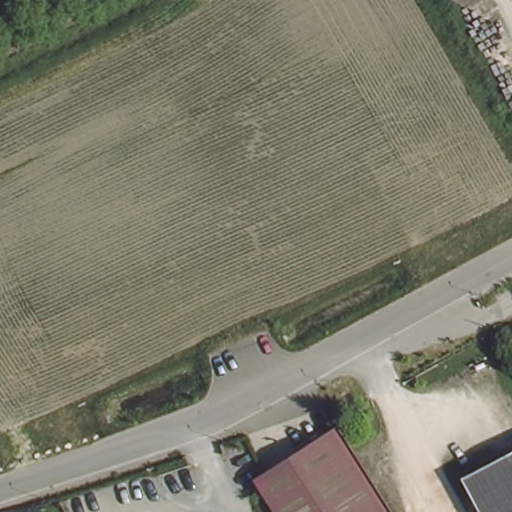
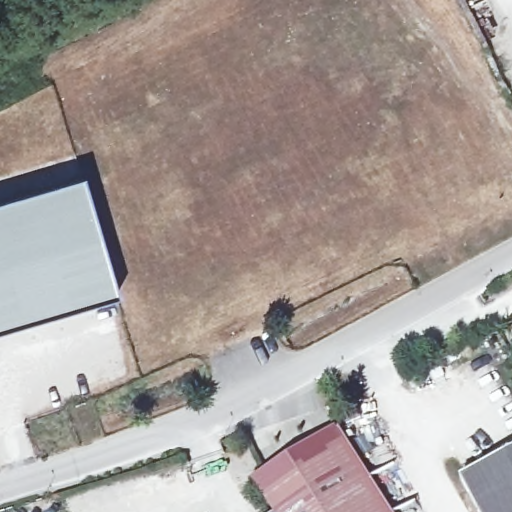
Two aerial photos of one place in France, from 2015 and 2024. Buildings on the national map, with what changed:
new [(85,184),(117,305),(0,339),(0,209),(85,184)]
unchanged [(387,512),(271,512),(250,479),(334,426),(387,512)]
unchanged [(512,448),(512,512),(483,512),(463,473),(512,448)]

